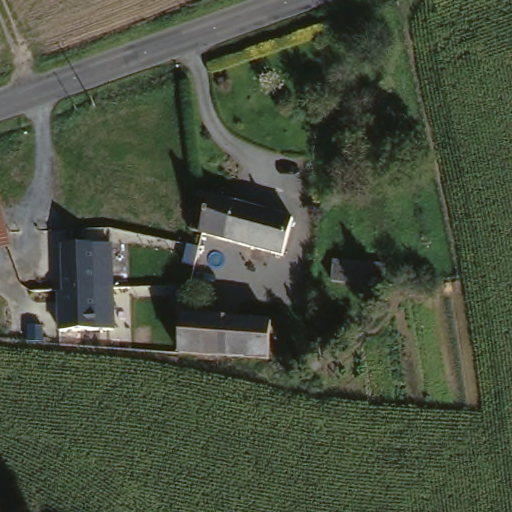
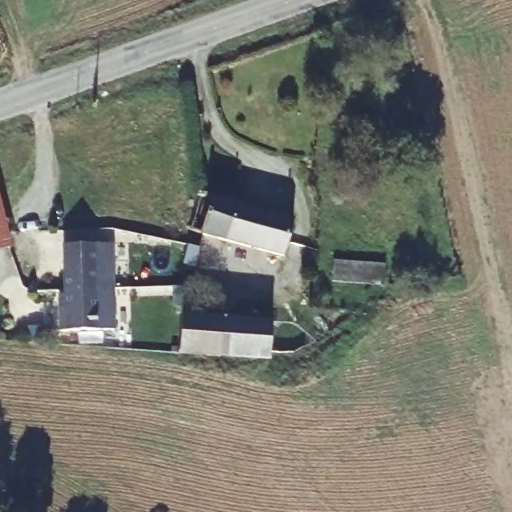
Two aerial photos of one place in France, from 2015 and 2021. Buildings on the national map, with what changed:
unchanged [(198,240),(198,239),(209,202),(289,225),(282,266),(198,240)]
unchanged [(7,247),(0,250),(0,218),(7,247)]
unchanged [(94,240),(98,338),(42,342),(41,297),(51,296),(51,292),(48,292),(46,243),(94,240)]
unchanged [(375,299),(326,295),(327,271),(370,275),(375,276),(375,299)]
unchanged [(173,321),(268,325),(268,362),(172,362),(173,321)]

